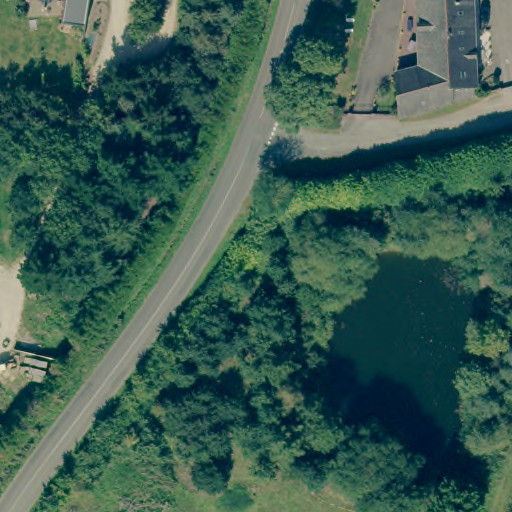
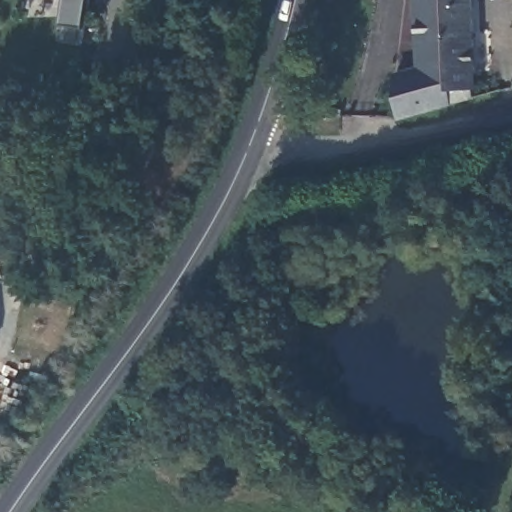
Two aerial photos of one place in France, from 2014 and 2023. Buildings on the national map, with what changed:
unchanged [(64,0),(89,0),(85,27),(61,24),(64,0)]
unchanged [(398,121),(396,69),(421,65),(418,0),(470,0),(475,85),(476,95),(450,105),(398,121)]
unchanged [(2,336),(0,336),(0,322),(2,336)]

